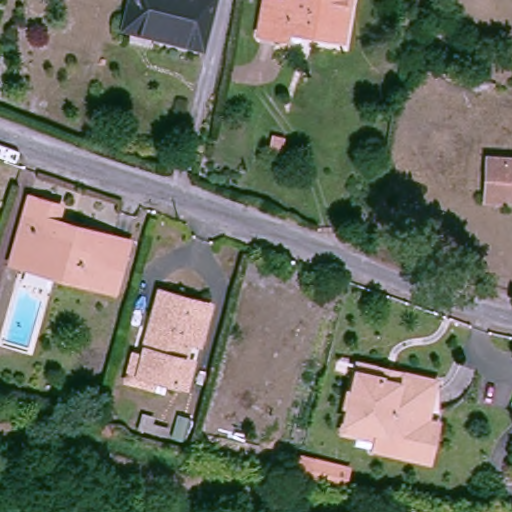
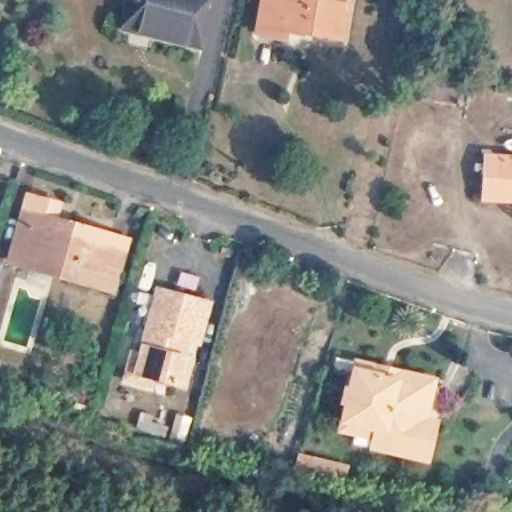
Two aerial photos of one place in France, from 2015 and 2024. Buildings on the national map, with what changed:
unchanged [(126,15),(130,0),(216,0),(204,45),(156,33),(123,25),(126,15)]
unchanged [(265,0),(345,0),(339,27),(286,17),(284,25),(262,21),(265,0)]
unchanged [(491,154),(512,156),(512,195),(488,194),(491,154)]
unchanged [(35,265),(14,260),(24,224),(33,195),(60,204),(55,218),(66,222),(86,227),(114,235),(128,240),(114,290),(100,285),(71,277),(51,271),(35,265)]
unchanged [(166,377),(143,370),(157,311),(163,292),(178,295),(199,301),(188,340),(177,380),(166,377)]
unchanged [(351,447),(353,433),(337,431),(349,356),(441,370),(436,410),(445,411),(435,460),(351,447)]

